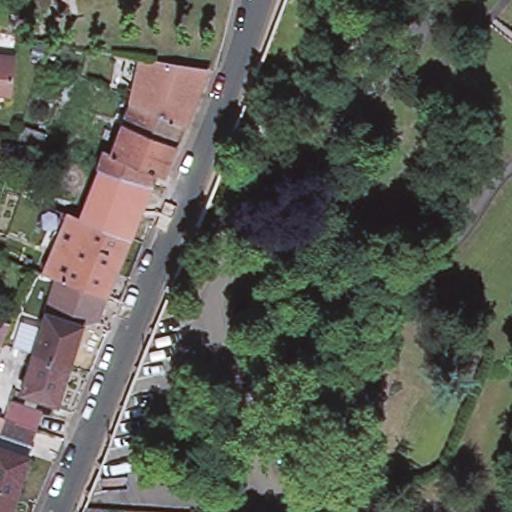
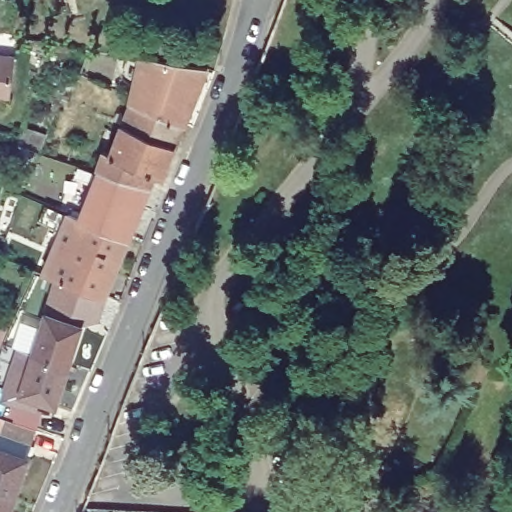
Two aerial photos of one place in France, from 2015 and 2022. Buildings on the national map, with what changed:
unchanged [(143,54),(204,65),(181,123),(128,99),(143,57),(143,54)]
unchanged [(13,56),(9,96),(0,95),(0,55),(13,56)]
unchanged [(181,123),(161,172),(153,171),(148,181),(97,168),(95,166),(101,149),(108,151),(128,99),(181,123)]
unchanged [(148,181),(126,235),(78,215),(97,168),(148,181)]
unchanged [(78,215),(126,235),(103,293),(100,293),(53,276),(40,272),(61,222),(53,218),(57,209),(65,212),(66,211),(78,215)]
unchanged [(53,276),(100,293),(93,318),(78,314),(76,321),(49,313),(53,305),(48,295),(53,276)]
unchanged [(43,311),(49,313),(76,321),(78,322),(66,361),(31,350),(43,311)]
unchanged [(12,320),(4,340),(3,342),(0,342),(0,319),(12,320)]
unchanged [(66,361),(54,400),(18,389),(31,350),(66,361)]
unchanged [(344,448),(371,372),(420,391),(391,469),(344,448)]
unchanged [(5,409),(10,393),(44,403),(40,420),(34,437),(30,449),(18,488),(10,512),(0,512),(0,424),(5,409)]

